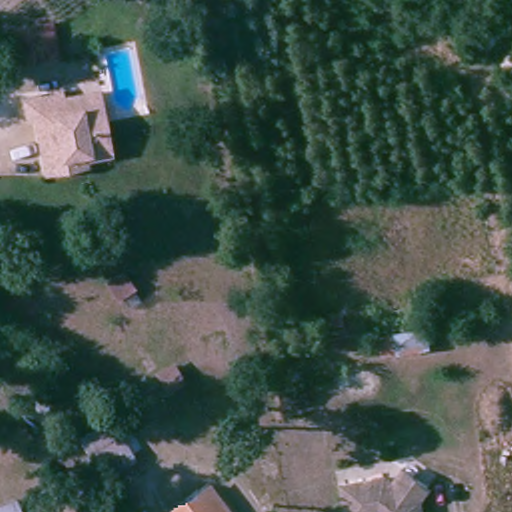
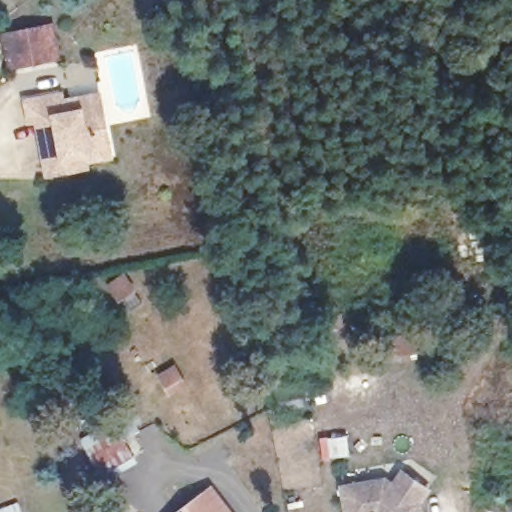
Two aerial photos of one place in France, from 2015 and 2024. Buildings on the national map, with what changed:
new [(0,36),(0,32),(52,23),(59,59),(5,69),(0,36)]
unchanged [(93,158),(95,164),(81,166),(55,172),(44,118),(38,119),(34,98),(69,90),(70,98),(106,90),(112,123),(117,146),(118,153),(93,158)]
unchanged [(429,349),(398,355),(395,337),(425,332),(429,349)]
unchanged [(183,387),(170,396),(163,384),(175,376),(183,387)]
unchanged [(114,480),(87,443),(117,423),(146,461),(114,480)]
unchanged [(349,489),(390,482),(400,489),(410,474),(435,491),(427,505),(428,512),(354,512),(349,489)]
unchanged [(210,500),(218,494),(228,509),(231,512),(193,512),(210,500)]
unchanged [(0,507),(21,499),(25,512),(0,512),(0,507)]

